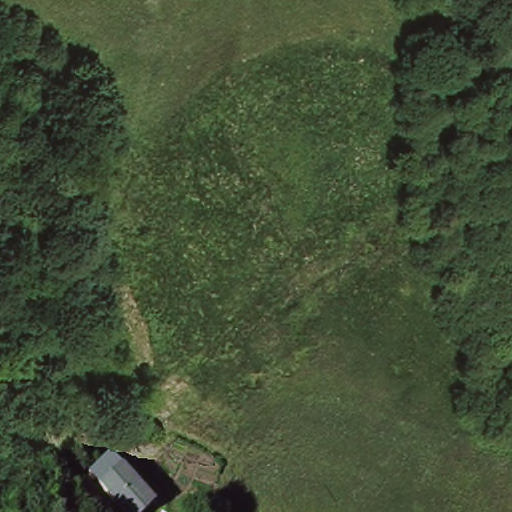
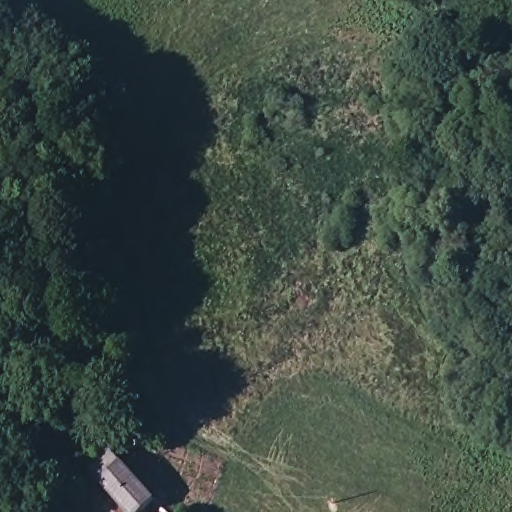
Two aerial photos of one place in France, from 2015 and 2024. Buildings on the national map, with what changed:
unchanged [(103,483),(123,469),(154,499),(141,512),(123,512),(103,483)]

